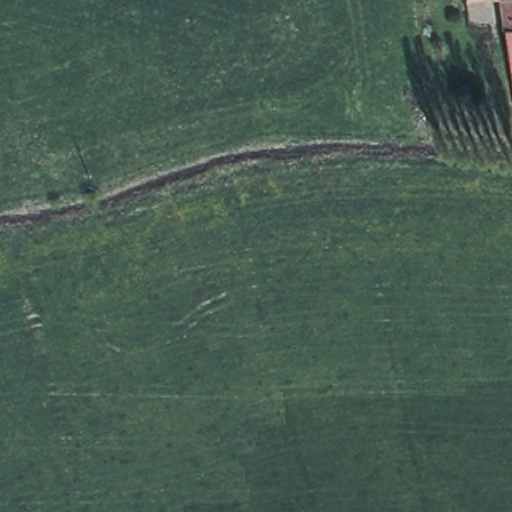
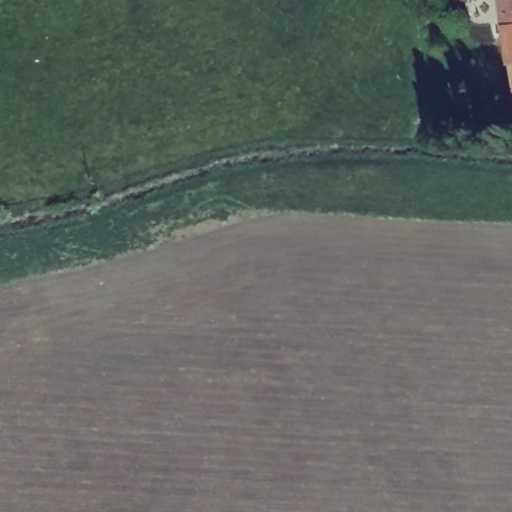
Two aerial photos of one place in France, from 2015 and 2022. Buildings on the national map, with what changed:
unchanged [(502,30),(498,0),(512,0),(512,91),(502,30)]

